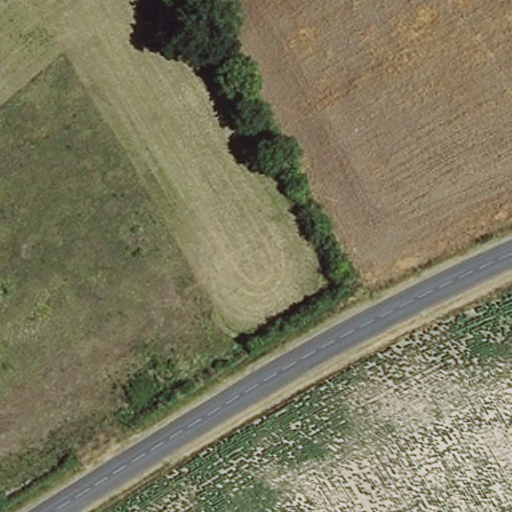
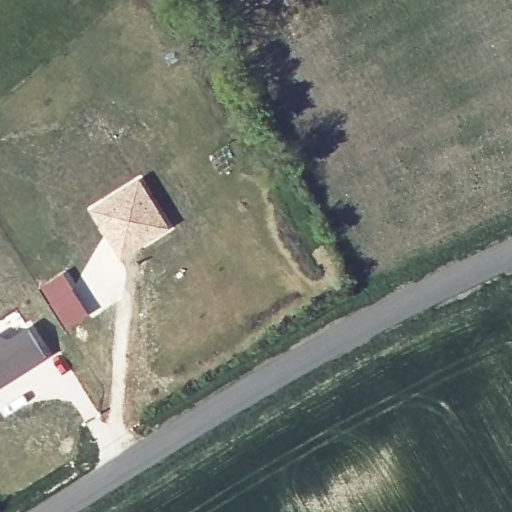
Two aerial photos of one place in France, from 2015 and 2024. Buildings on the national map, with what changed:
new [(140,175),(172,228),(121,258),(86,208),(140,175)]
new [(64,271),(90,315),(66,330),(39,287),(64,271)]
new [(9,324),(16,324),(18,324),(25,323),(48,358),(0,389),(0,328),(9,324)]

